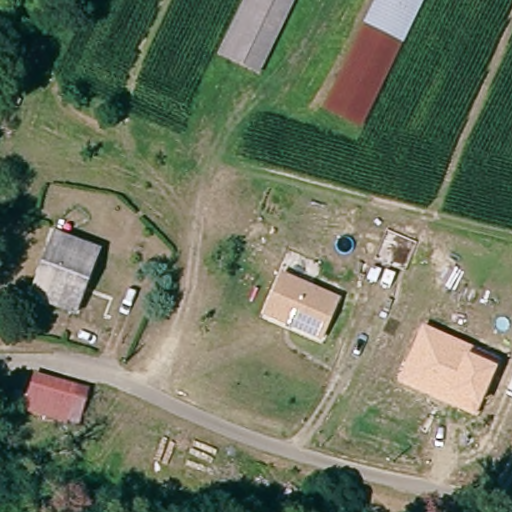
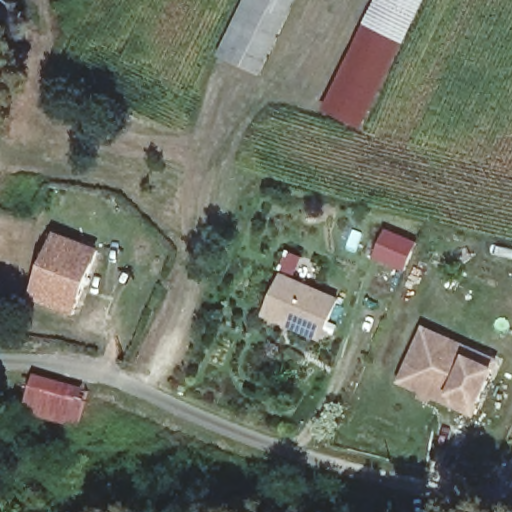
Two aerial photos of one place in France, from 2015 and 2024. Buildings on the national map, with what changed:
unchanged [(227,22),(239,0),(246,0),(278,17),(265,42),(227,22)]
unchanged [(246,0),(287,0),(278,17),(246,0)]
unchanged [(383,72),(348,54),(376,0),(421,0),(383,72)]
unchanged [(250,71),(213,50),(227,22),(265,42),(250,71)]
unchanged [(383,72),(357,123),(321,105),(348,54),(383,72)]
new [(405,268),(374,255),(386,227),(417,240),(405,268)]
unchanged [(36,286),(58,239),(98,258),(79,307),(36,286)]
unchanged [(307,343),(252,319),(270,279),(325,303),(307,343)]
unchanged [(495,368),(478,408),(472,418),(394,383),(421,323),(498,358),(495,368)]
unchanged [(37,376),(90,392),(80,424),(25,413),(37,376)]

